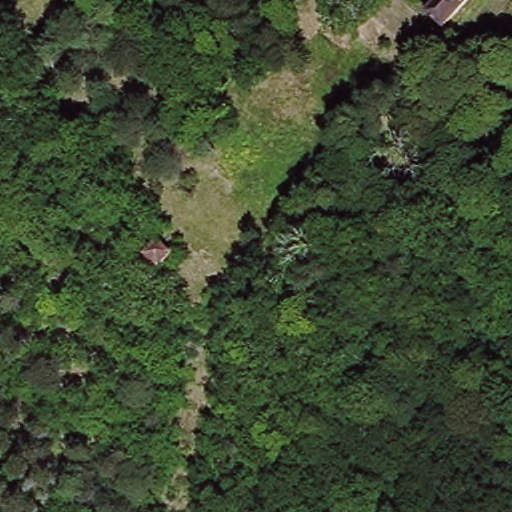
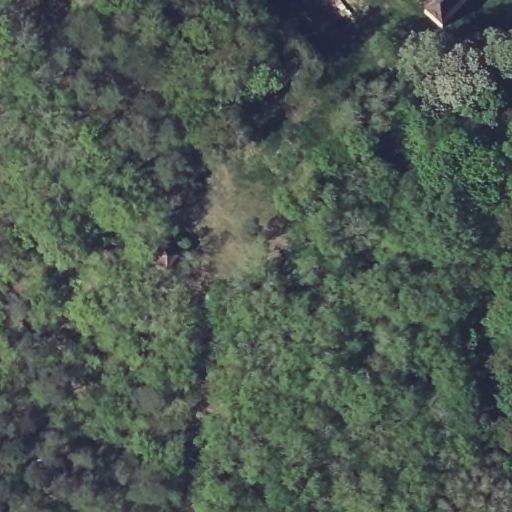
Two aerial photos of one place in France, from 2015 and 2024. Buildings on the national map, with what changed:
unchanged [(430,0),(475,0),(445,34),(429,20),(439,9),(430,0)]
unchanged [(187,260),(172,272),(158,255),(173,243),(187,260)]

